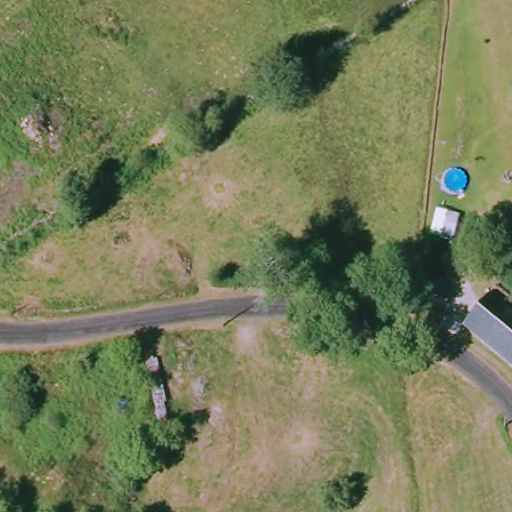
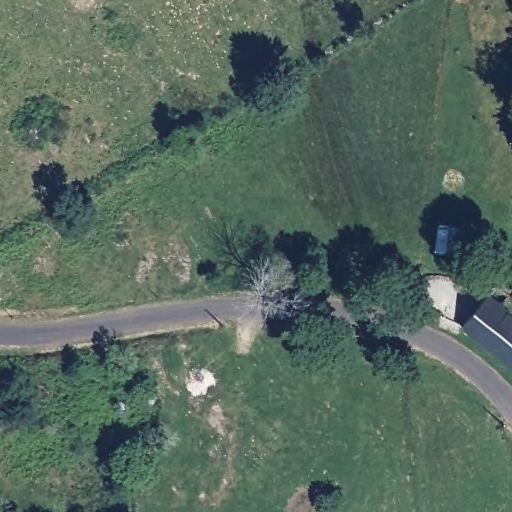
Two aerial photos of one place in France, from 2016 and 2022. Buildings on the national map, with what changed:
unchanged [(512,316),(512,371),(459,327),(490,297),(512,316)]

